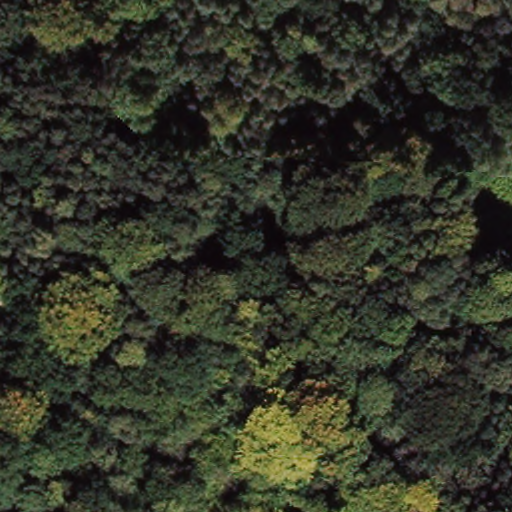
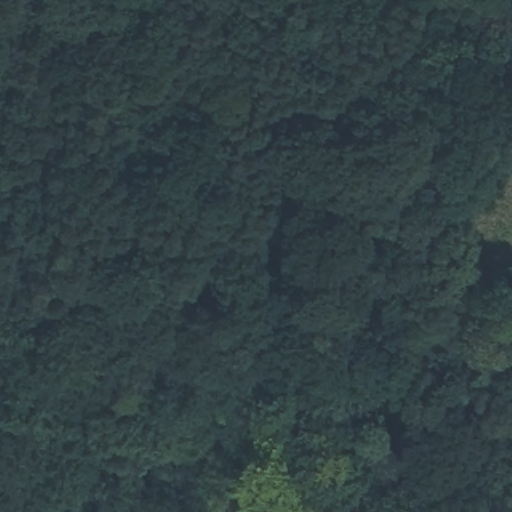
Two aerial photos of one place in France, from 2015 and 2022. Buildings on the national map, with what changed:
[]

